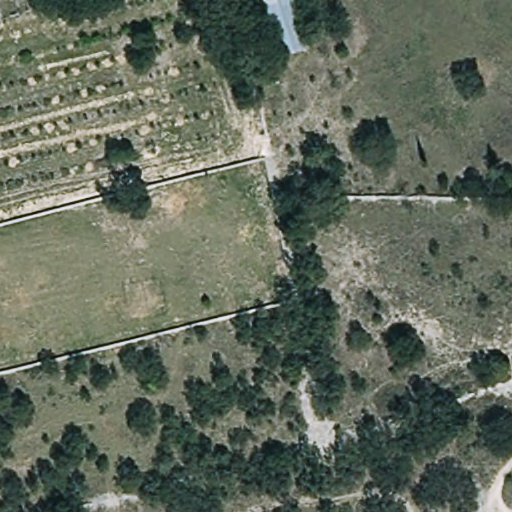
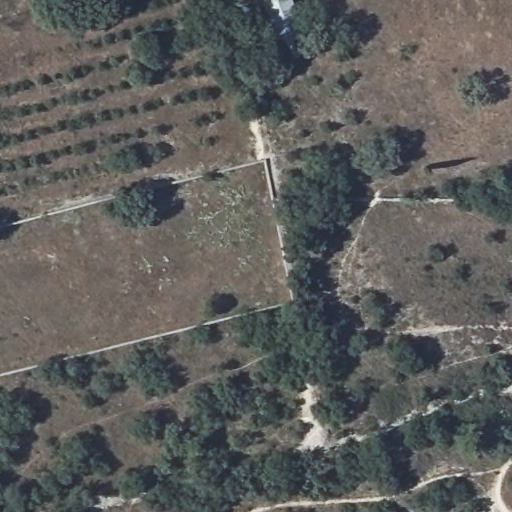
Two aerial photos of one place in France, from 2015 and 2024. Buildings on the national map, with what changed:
unchanged [(309,50),(277,60),(258,0),(291,0),(309,50)]

